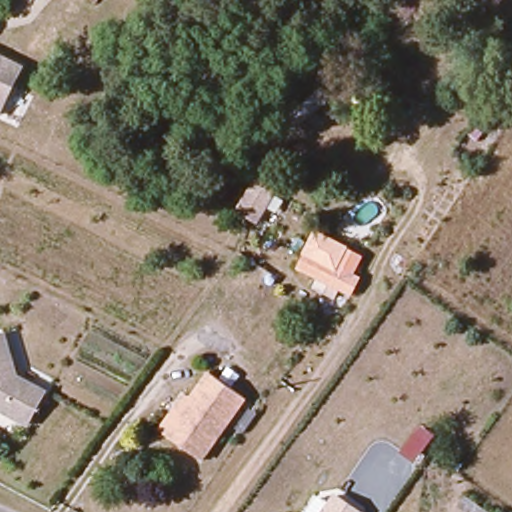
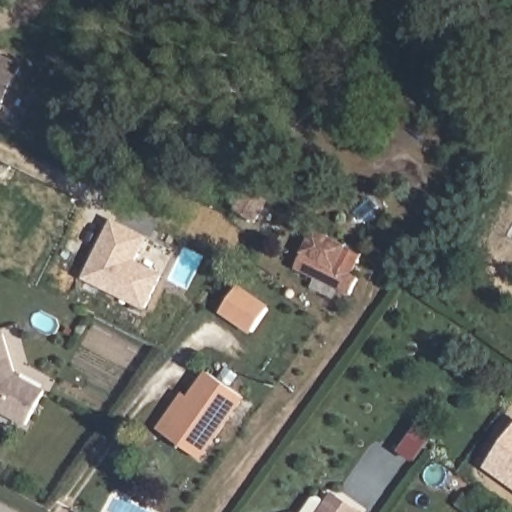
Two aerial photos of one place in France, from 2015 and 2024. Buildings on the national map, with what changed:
unchanged [(0,112),(0,72),(17,81),(0,112)]
unchanged [(260,174),(278,186),(268,202),(256,218),(238,204),(248,190),(260,174)]
new [(114,222),(148,239),(135,263),(161,276),(144,310),(83,280),(114,222)]
unchanged [(347,299),(338,294),(295,269),(313,235),(362,260),(348,279),(355,284),(347,299)]
new [(240,283),(271,306),(249,335),(219,312),(240,283)]
unchanged [(18,378),(47,394),(29,427),(3,412),(0,411),(0,338),(5,336),(18,378)]
unchanged [(251,401),(202,467),(169,442),(154,431),(182,395),(195,405),(216,378),(251,401)]
new [(415,463),(399,451),(420,423),(435,435),(415,463)]
new [(512,433),(512,487),(486,468),(512,433)]
unchanged [(491,512),(470,512),(456,502),(463,492),(491,512)]
unchanged [(330,502),(337,493),(365,512),(306,512),(319,494),(330,502)]

